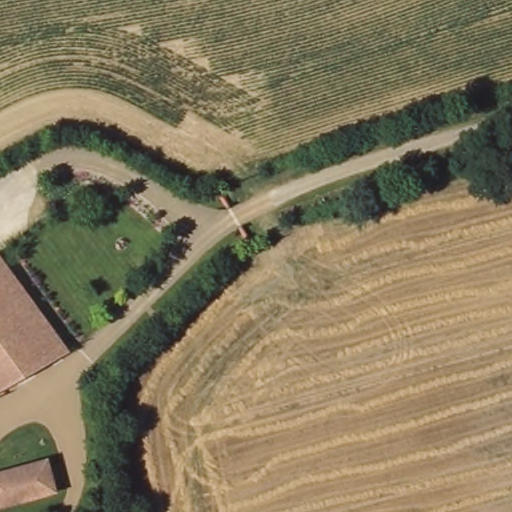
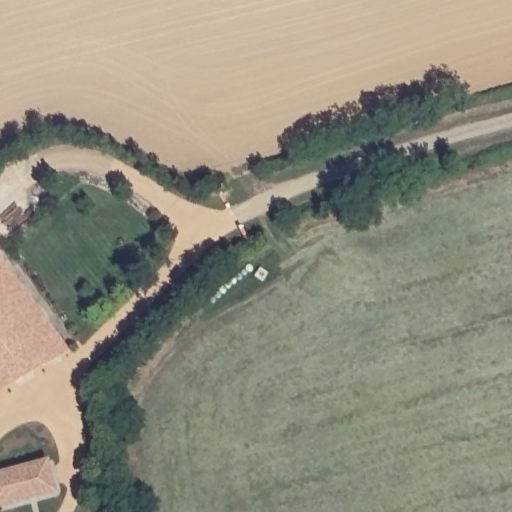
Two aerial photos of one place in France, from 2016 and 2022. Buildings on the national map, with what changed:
unchanged [(70,347),(0,392),(0,250),(1,249),(70,347)]
unchanged [(0,509),(0,473),(49,458),(59,492),(0,509)]

